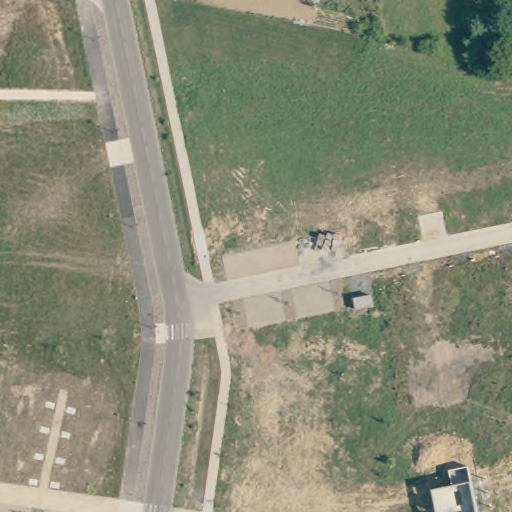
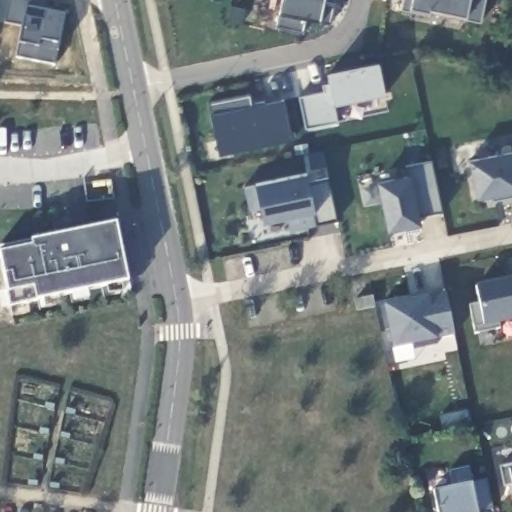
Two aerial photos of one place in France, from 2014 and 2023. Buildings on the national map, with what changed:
new [(69,7),(59,65),(18,59),(29,0),(69,7)]
new [(326,23),(302,18),(299,32),(272,27),(277,0),(322,0),(330,2),(326,23)]
new [(480,0),(477,19),(461,16),(461,13),(426,6),(425,12),(396,7),(397,0),(480,0)]
new [(321,90),(319,83),(327,81),(325,74),(376,62),(383,92),(332,104),(336,120),(303,127),(296,95),(321,90)]
new [(214,142),(205,103),(248,94),(250,101),(262,99),(263,102),(281,99),(291,140),(227,154),(217,156),(214,142)]
unchanged [(512,197),(494,201),(495,195),(477,199),(469,160),(512,151),(512,197)]
new [(407,175),(405,164),(431,158),(442,210),(417,215),(419,222),(388,229),(378,181),(407,175)]
new [(290,229),(287,217),(263,222),(260,207),(249,210),(243,185),(305,171),(307,180),(327,175),(337,218),(315,223),(307,225),(290,229)]
new [(116,223),(128,282),(37,300),(9,306),(8,292),(0,260),(0,247),(116,223)]
new [(495,328),(470,333),(464,305),(474,302),(471,287),(503,280),(504,283),(512,281),(512,319),(494,322),(495,328)]
new [(400,300),(401,303),(427,298),(426,295),(445,291),(454,333),(436,337),(437,342),(413,347),(412,342),(393,346),(389,327),(384,328),(379,304),(400,300)]
unchanged [(500,467),(512,465),(512,485),(504,487),(500,467)]
unchanged [(468,469),(471,483),(486,478),(493,510),(484,512),(438,512),(435,491),(455,487),(451,471),(468,469)]

